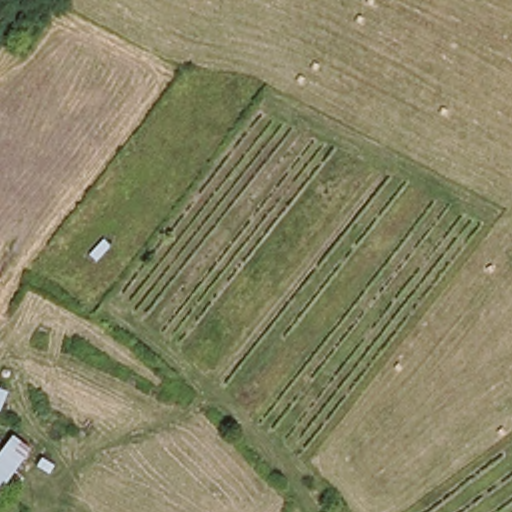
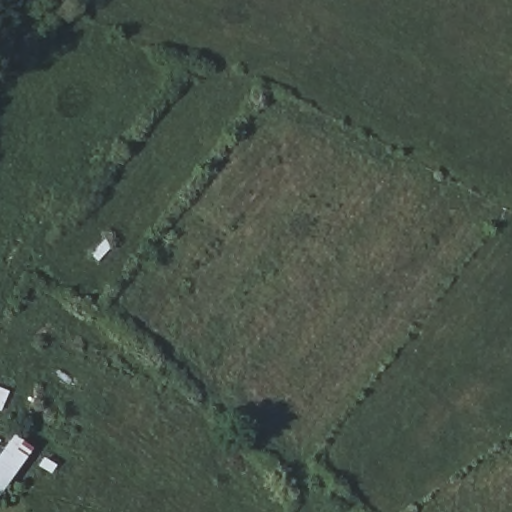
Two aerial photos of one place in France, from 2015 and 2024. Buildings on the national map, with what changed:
unchanged [(12,436),(32,450),(0,494),(0,452),(12,436)]

